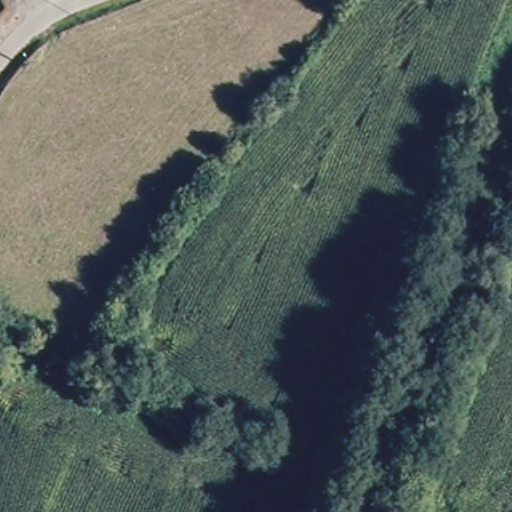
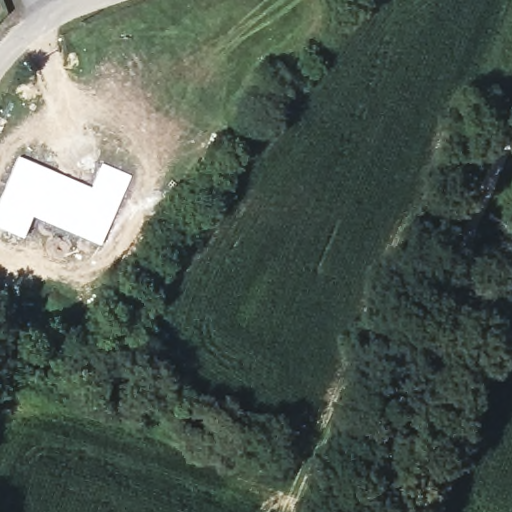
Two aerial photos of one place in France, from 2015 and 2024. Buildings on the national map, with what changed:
new [(131,176),(100,244),(33,215),(23,238),(0,228),(0,198),(19,156),(92,187),(102,163),(131,176)]

